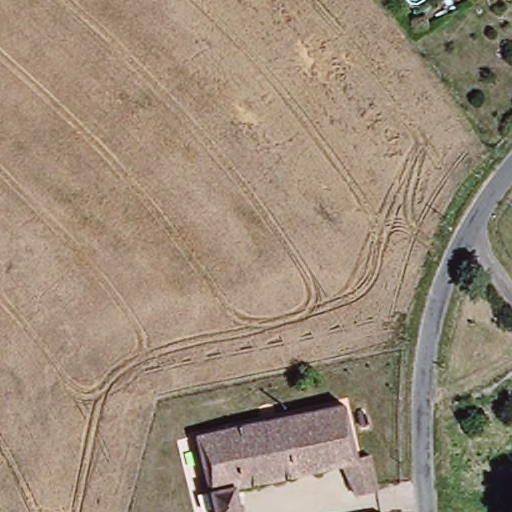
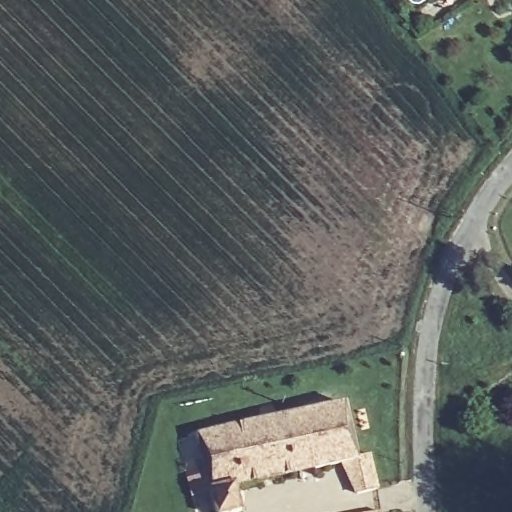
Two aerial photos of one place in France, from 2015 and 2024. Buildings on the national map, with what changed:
unchanged [(232,486),(235,511),(232,512),(209,512),(191,434),(335,402),(338,427),(360,421),(365,450),(359,452),(364,480),(354,482),(342,469),(340,457),(232,486)]
unchanged [(368,512),(365,512),(368,511),(368,512)]

